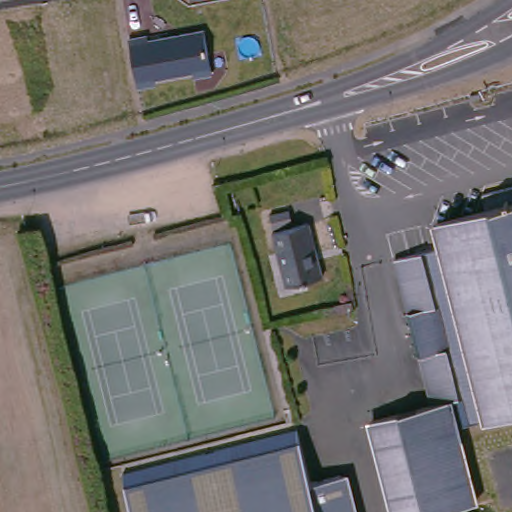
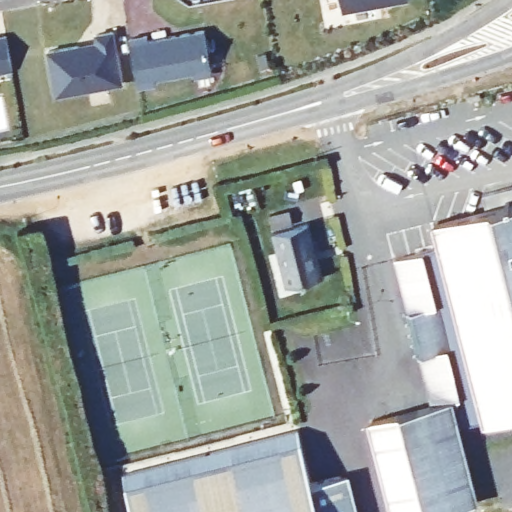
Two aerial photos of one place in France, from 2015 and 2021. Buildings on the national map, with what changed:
new [(356,14),(354,0),(421,0),(421,2),(356,14)]
unchanged [(193,77),(192,72),(153,79),(154,84),(138,87),(128,37),(145,34),(146,40),(201,30),(209,72),(193,77)]
new [(96,44),(94,35),(114,31),(124,84),(53,97),(46,52),(96,44)]
new [(19,42),(26,77),(0,82),(0,46),(19,42)]
unchanged [(391,264),(404,261),(438,252),(433,230),(483,215),(478,201),(512,191),(512,405),(376,437),(372,425),(426,407),(424,397),(419,377),(397,285),(391,264)]
unchanged [(324,269),(283,278),(272,227),(309,217),(324,269)]
unchanged [(478,505),(452,512),(394,512),(376,437),(512,405),(512,419),(461,434),(478,505)]
unchanged [(131,489),(125,463),(293,423),(299,450),(131,489)]
unchanged [(306,477),(336,471),(344,512),(136,512),(131,489),(299,450),(306,477)]

